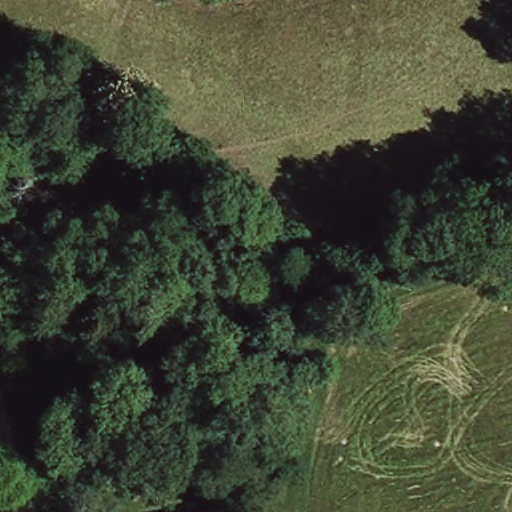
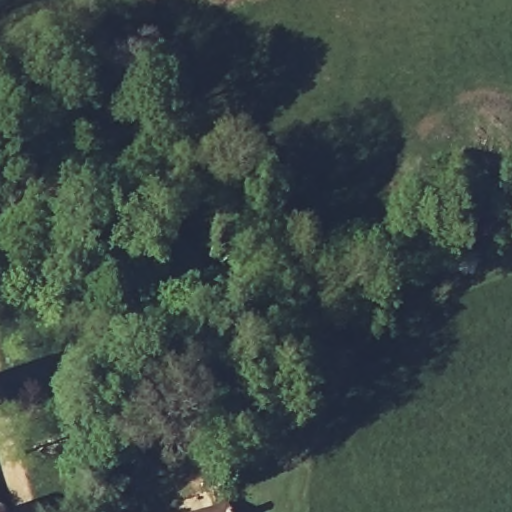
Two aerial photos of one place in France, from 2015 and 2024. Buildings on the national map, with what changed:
[]

